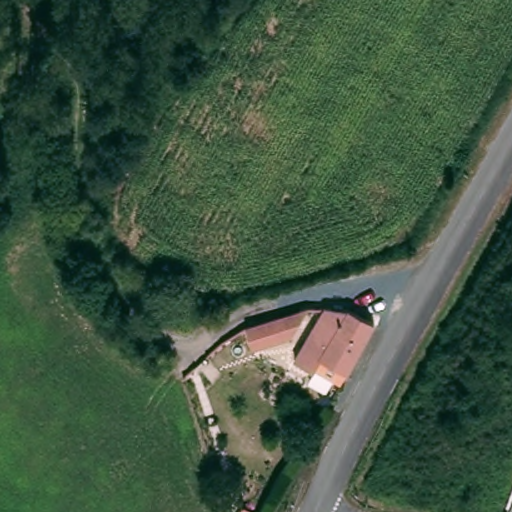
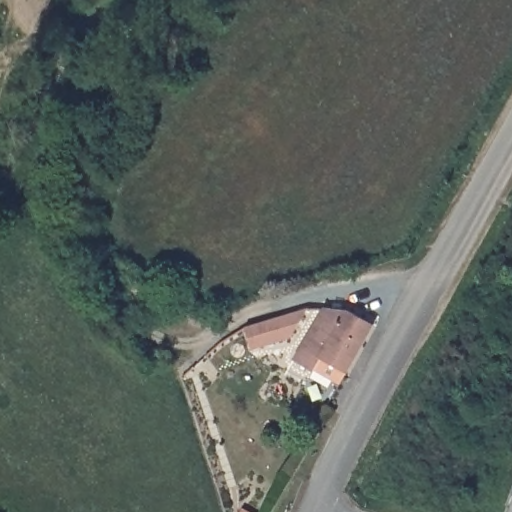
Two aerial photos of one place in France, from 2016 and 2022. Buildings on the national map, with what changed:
unchanged [(307,302),(327,303),(371,319),(340,386),(296,360),(318,322),(305,320),(298,336),(254,348),(243,324),(307,302)]

